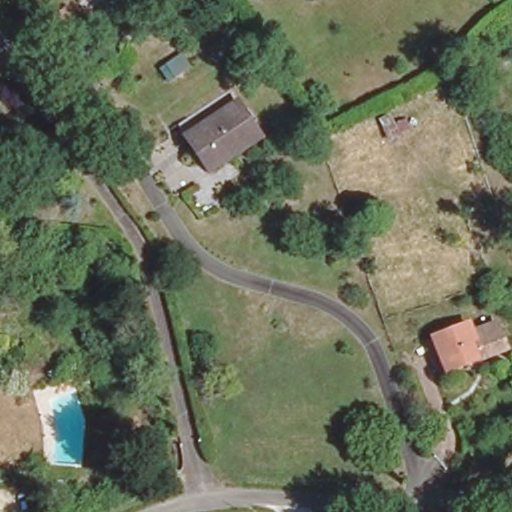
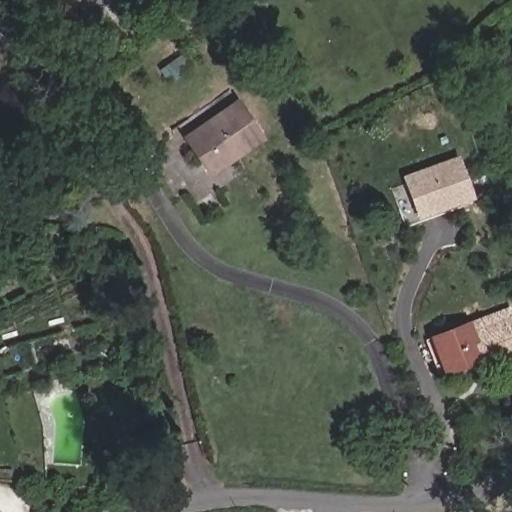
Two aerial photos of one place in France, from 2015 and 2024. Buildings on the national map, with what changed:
unchanged [(78,25),(65,34),(57,22),(52,15),(66,6),(78,25)]
unchanged [(184,130),(238,97),(260,133),(206,166),(184,130)]
new [(419,214),(406,176),(458,158),(470,195),(419,214)]
unchanged [(469,323),(474,336),(500,328),(506,345),(439,368),(428,337),(469,323)]

